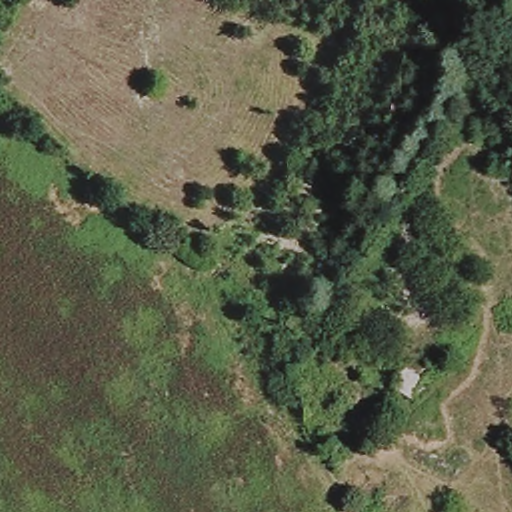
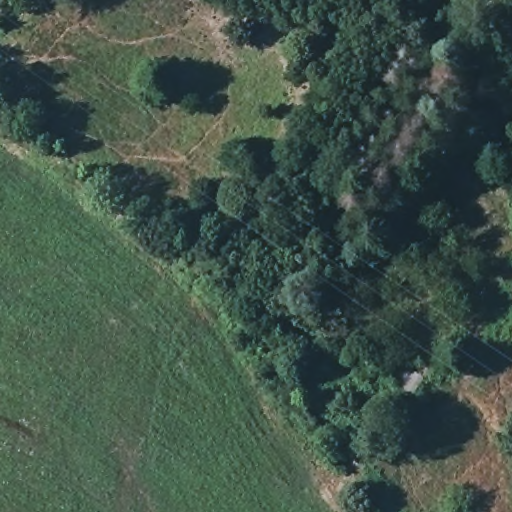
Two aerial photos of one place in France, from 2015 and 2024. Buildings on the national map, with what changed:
unchanged [(292,313),(306,321),(300,331),(287,323),(292,313)]
unchanged [(414,394),(402,388),(405,379),(417,384),(414,394)]

